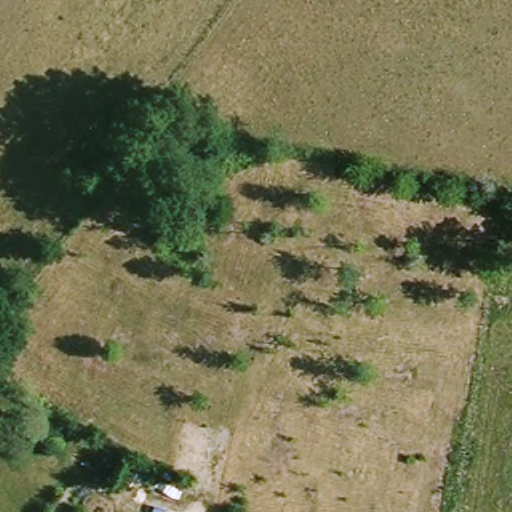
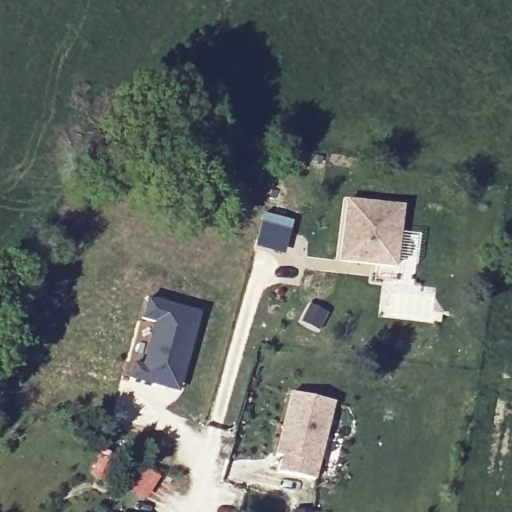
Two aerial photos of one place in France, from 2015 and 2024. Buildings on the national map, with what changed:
new [(403,206),(395,270),(337,262),(343,199),(403,206)]
new [(133,362),(142,365),(154,322),(142,319),(148,298),(200,314),(179,390),(130,379),(133,362)]
new [(291,393),(331,404),(313,481),(278,472),(282,457),(276,455),(291,393)]

